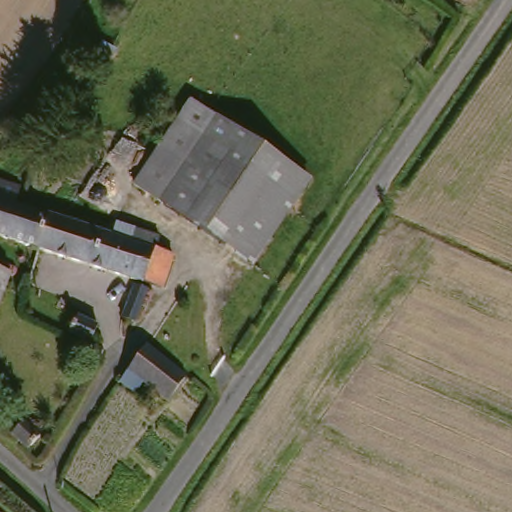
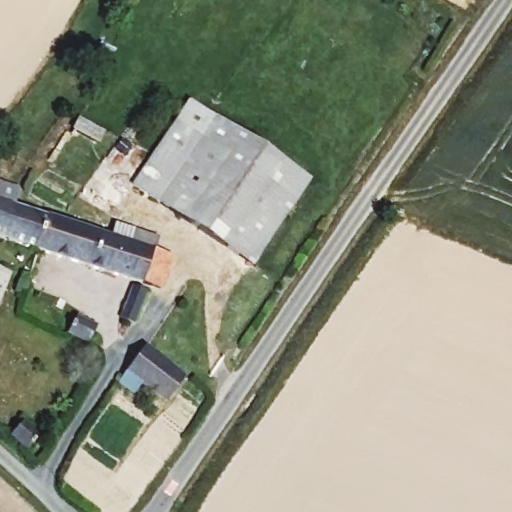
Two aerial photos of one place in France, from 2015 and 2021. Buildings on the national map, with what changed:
unchanged [(133,188),(188,101),(220,121),(163,208),(133,188)]
unchanged [(220,121),(312,180),(252,267),(163,208),(220,121)]
unchanged [(35,252),(0,241),(0,182),(14,186),(9,206),(22,210),(45,217),(35,252)]
unchanged [(126,242),(130,230),(153,238),(150,248),(166,254),(154,289),(142,285),(130,322),(120,319),(131,283),(35,252),(45,217),(126,242)]
unchanged [(0,289),(0,279),(3,280),(0,289)]
unchanged [(90,347),(67,337),(73,321),(74,317),(99,328),(90,347)]
unchanged [(119,380),(122,374),(126,369),(144,345),(185,373),(169,395),(143,380),(137,389),(119,380)]
unchanged [(25,420),(43,439),(30,452),(21,441),(13,431),(25,420)]

